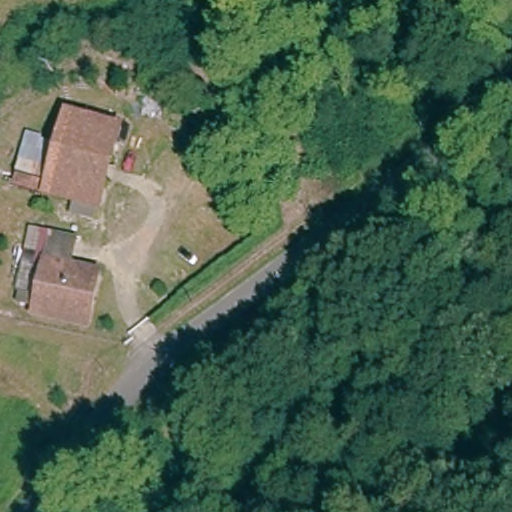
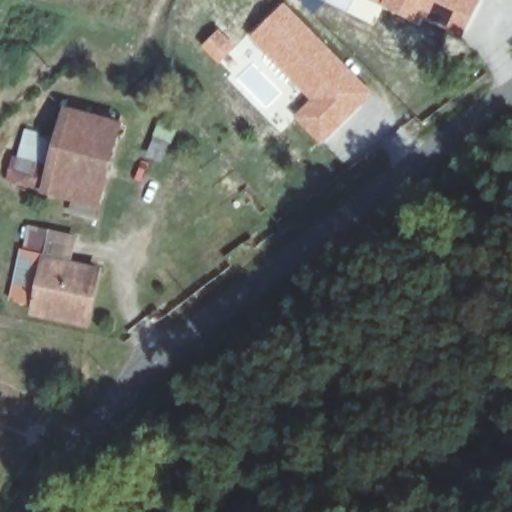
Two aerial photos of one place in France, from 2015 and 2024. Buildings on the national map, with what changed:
new [(463,32),(446,23),(444,28),(425,20),(421,27),(370,3),(366,0),(479,0),(463,32)]
new [(284,2),(375,92),(320,145),(292,115),(309,99),(249,36),(284,2)]
new [(219,28),(235,46),(216,64),(200,46),(219,28)]
unchanged [(64,107),(120,120),(95,213),(67,206),(68,199),(43,192),(64,107)]
unchanged [(82,316),(26,302),(38,256),(45,231),(72,239),(65,263),(91,270),(82,316)]

